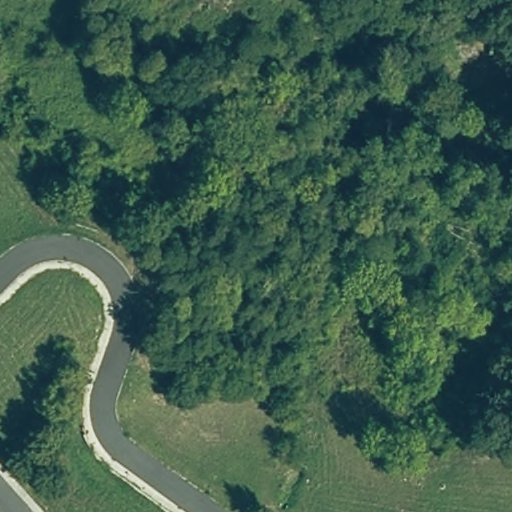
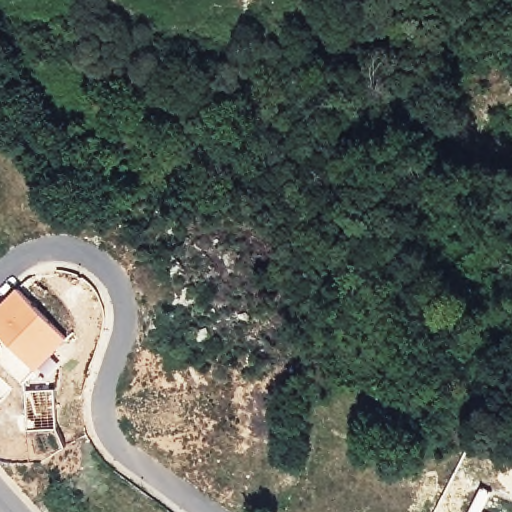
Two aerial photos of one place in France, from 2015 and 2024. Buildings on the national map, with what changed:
new [(0,336),(0,307),(18,289),(70,339),(37,373),(0,336)]

